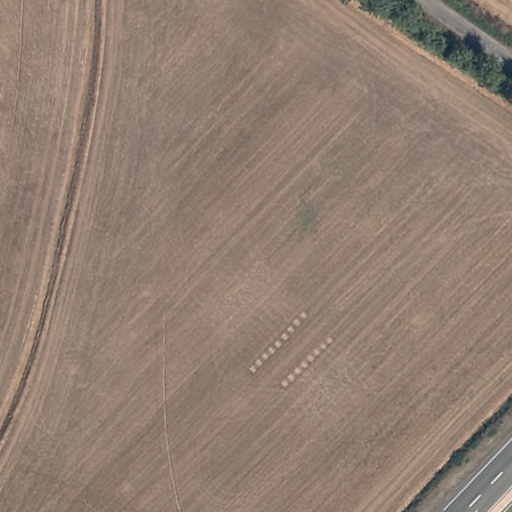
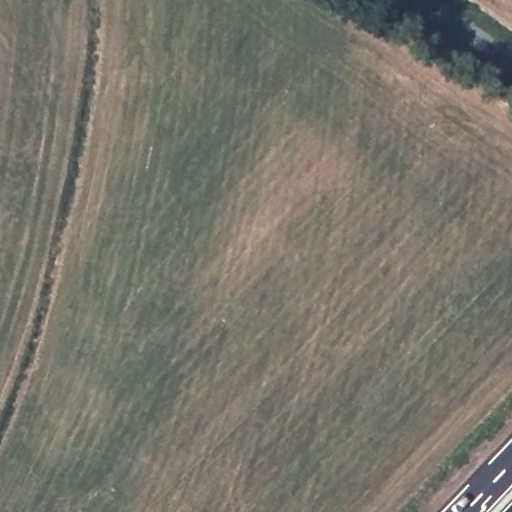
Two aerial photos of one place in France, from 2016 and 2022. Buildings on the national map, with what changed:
[]

